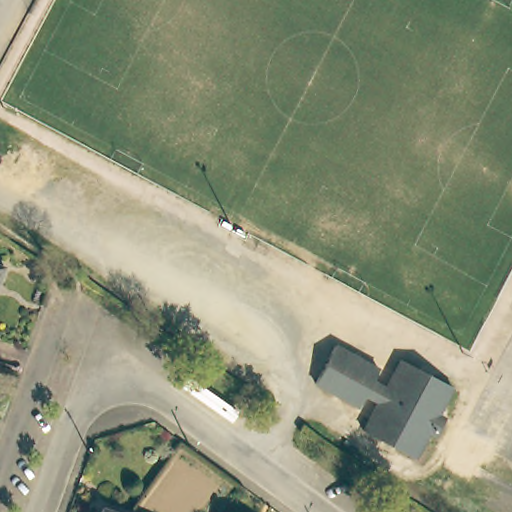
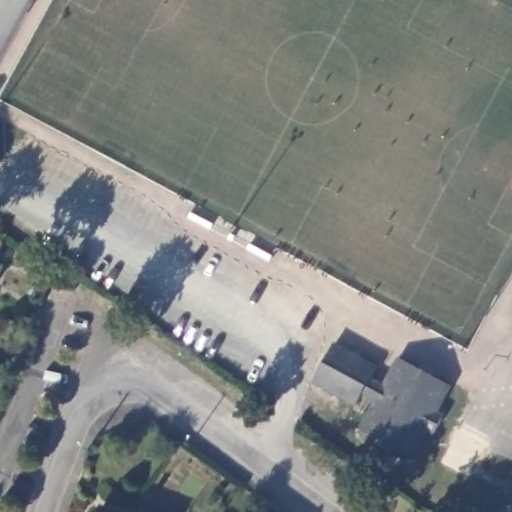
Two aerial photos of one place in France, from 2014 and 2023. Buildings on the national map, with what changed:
unchanged [(0,271),(0,268),(1,268),(0,271)]
unchanged [(375,367),(353,405),(311,382),(332,343),(375,367)]
unchanged [(359,428),(398,357),(449,385),(434,412),(441,416),(432,432),(425,429),(410,455),(359,428)]
unchanged [(100,506),(117,512),(98,512),(100,506)]

